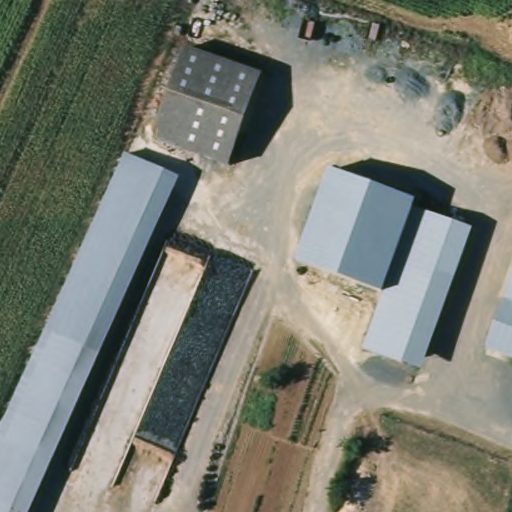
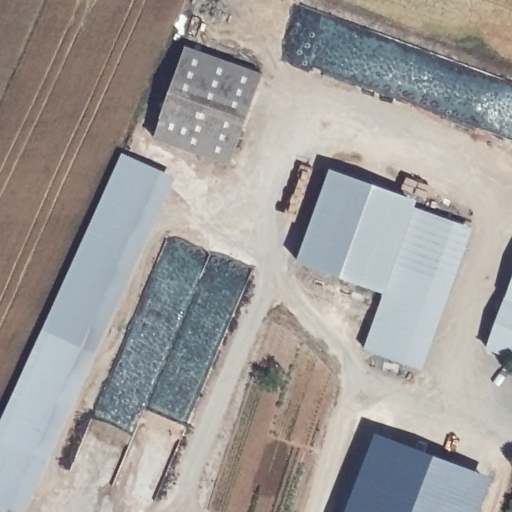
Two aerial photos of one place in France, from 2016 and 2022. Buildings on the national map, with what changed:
unchanged [(260,72),(226,164),(153,137),(182,47),(260,72)]
unchanged [(44,326),(121,153),(176,179),(99,350),(85,344),(49,329),(44,326)]
unchanged [(298,261),(331,168),(418,198),(415,209),(418,209),(423,194),(464,209),(460,223),(474,227),(424,369),(365,349),(385,292),(298,261)]
unchanged [(485,351),(512,275),(512,360),(485,351)]
unchanged [(85,344),(8,512),(0,512),(0,436),(49,329),(85,344)]
new [(480,512),(346,512),(376,434),(493,478),(480,512)]

